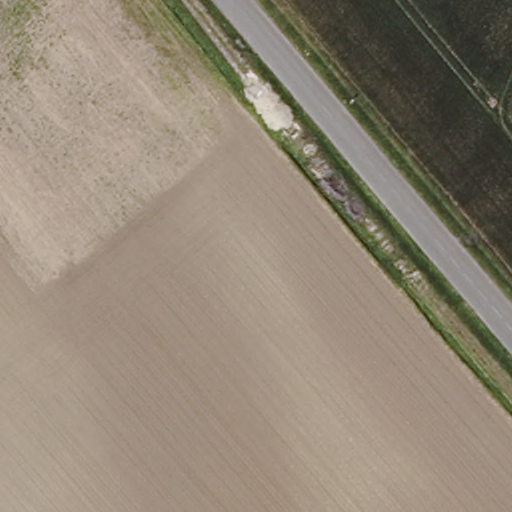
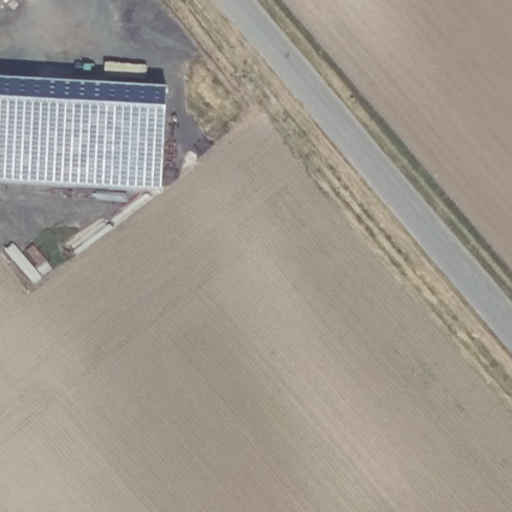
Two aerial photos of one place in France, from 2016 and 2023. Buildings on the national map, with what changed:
new [(167,87),(160,191),(0,183),(0,78),(167,87)]

